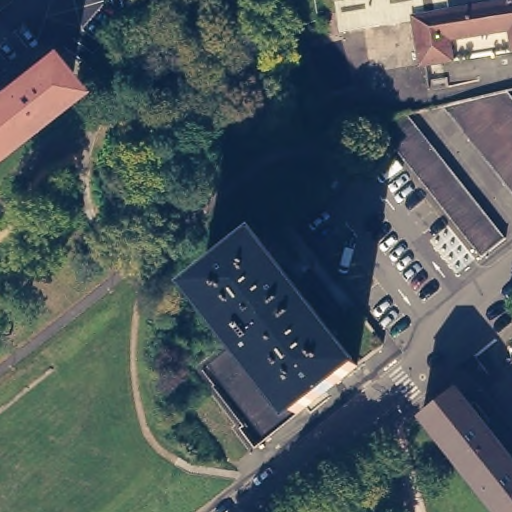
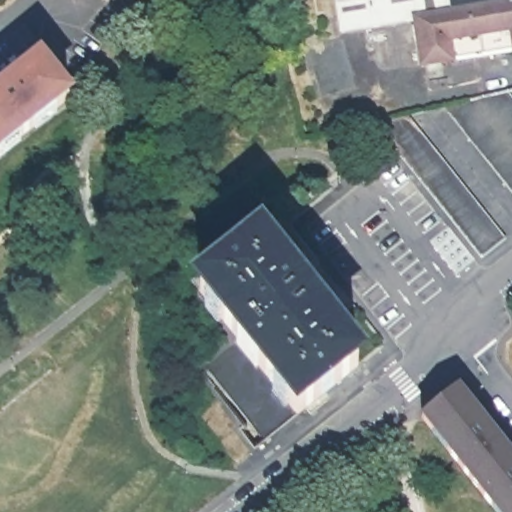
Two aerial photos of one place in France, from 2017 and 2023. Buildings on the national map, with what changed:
unchanged [(413,11),(417,18),(415,20),(402,22),(342,32),(337,0),(484,0),(413,11)]
unchanged [(484,0),(512,0),(512,50),(423,64),(417,19),(415,20),(417,18),(413,11),(484,0)]
unchanged [(72,99),(0,156),(0,102),(47,65),(72,99)]
unchanged [(508,91),(512,95),(512,192),(443,106),(508,91)]
unchanged [(392,140),(374,117),(406,109),(505,235),(482,253),(397,146),(392,140)]
unchanged [(293,410),(253,360),(251,362),(232,337),(234,335),(195,286),(255,238),(353,362),(293,410)]
unchanged [(457,391),(512,460),(512,512),(499,512),(424,418),(457,391)]

